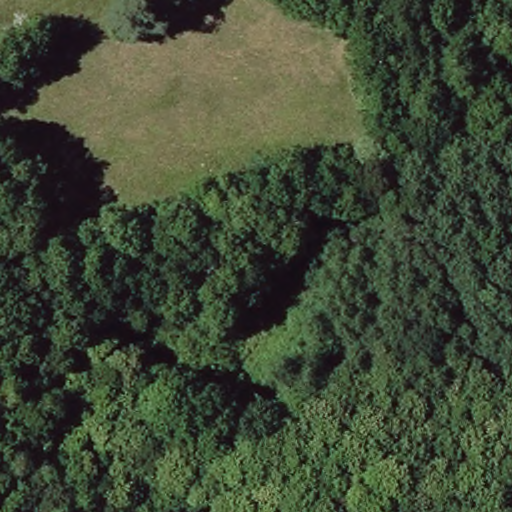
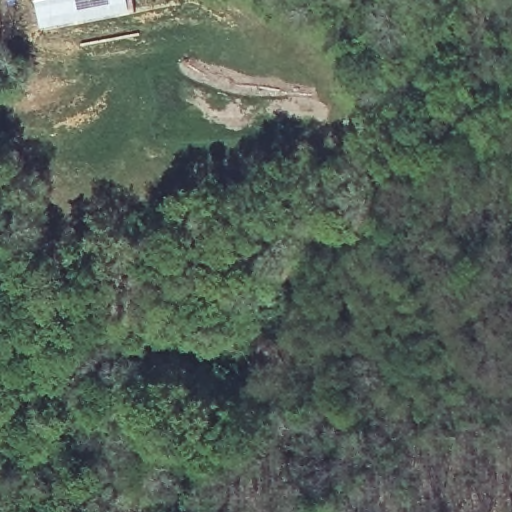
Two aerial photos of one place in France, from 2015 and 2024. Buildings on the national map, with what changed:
new [(135,13),(98,20),(42,27),(37,0),(132,0),(135,13)]

